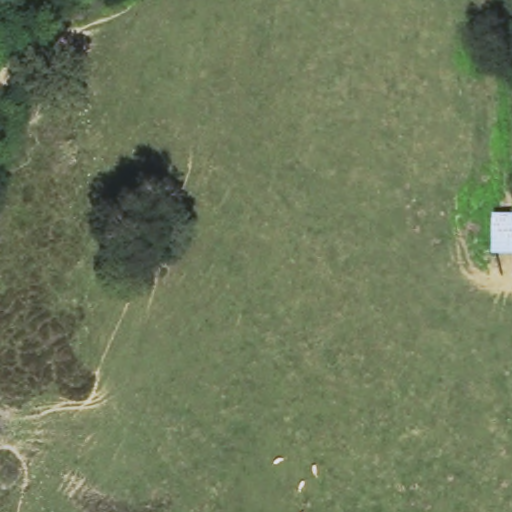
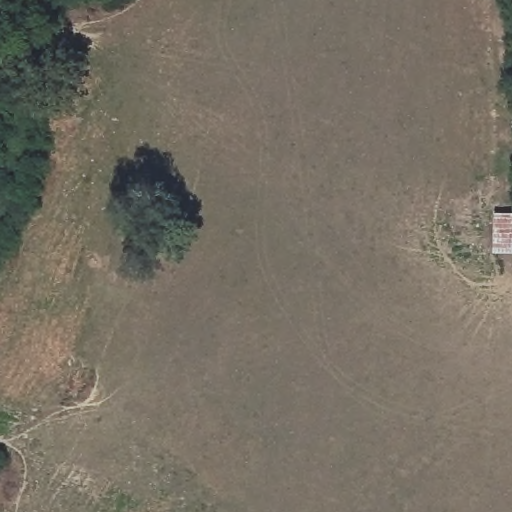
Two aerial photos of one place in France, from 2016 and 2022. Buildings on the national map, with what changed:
unchanged [(492,255),(492,212),(512,212),(512,255),(492,255)]

